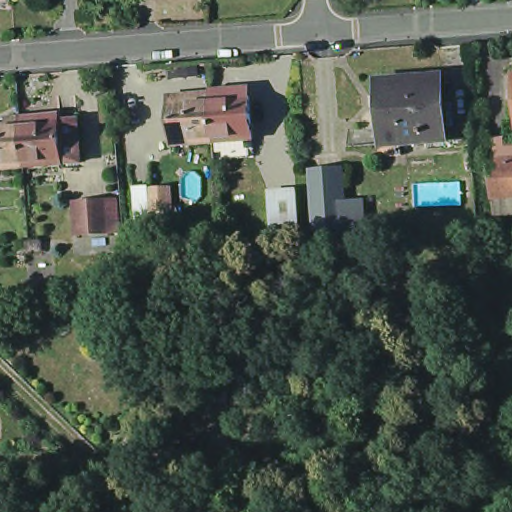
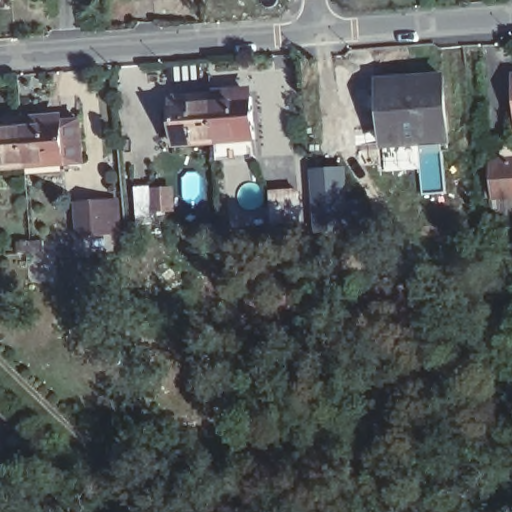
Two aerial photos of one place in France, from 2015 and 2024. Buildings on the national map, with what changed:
unchanged [(379,79),(442,74),(447,139),(384,144),(379,79)]
unchanged [(256,89),(260,133),(220,135),(216,93),(256,89)]
unchanged [(220,135),(180,139),(176,95),(216,93),(220,135)]
unchanged [(10,128),(9,122),(21,121),(32,120),(32,126),(61,124),(78,124),(81,167),(64,168),(25,171),(0,173),(0,129),(10,128)]
unchanged [(496,222),(495,202),(492,202),(491,160),(512,159),(512,221),(496,222)]
unchanged [(136,188),(150,187),(152,214),(137,215),(136,188)]
unchanged [(269,193),(298,190),(300,225),(272,228),(269,193)]
unchanged [(313,233),(310,201),(341,199),(343,220),(354,220),(354,229),(344,230),(313,233)]
unchanged [(79,211),(110,208),(112,235),(81,238),(79,211)]

